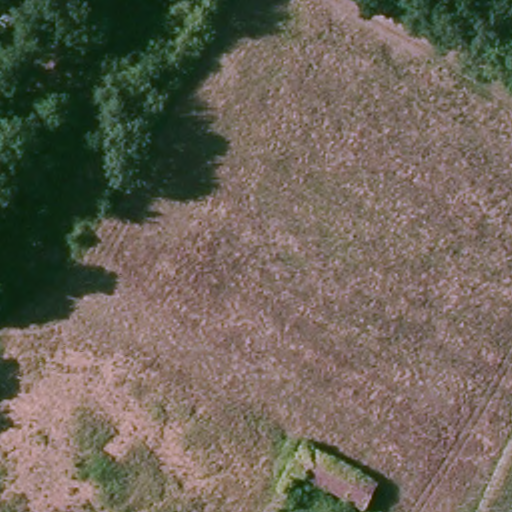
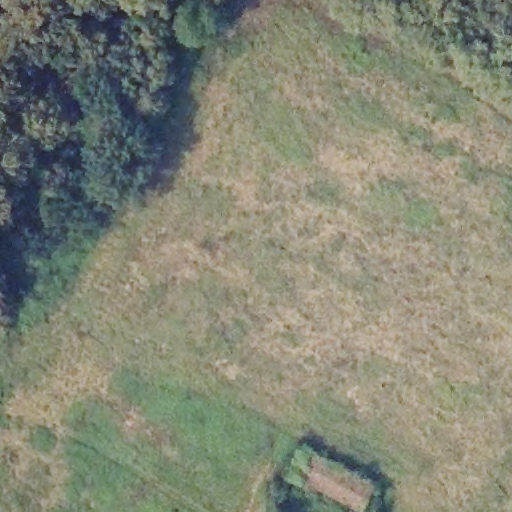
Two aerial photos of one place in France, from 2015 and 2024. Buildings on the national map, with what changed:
unchanged [(359,475),(373,483),(363,497),(356,507),(293,468),(308,445),(359,475)]

